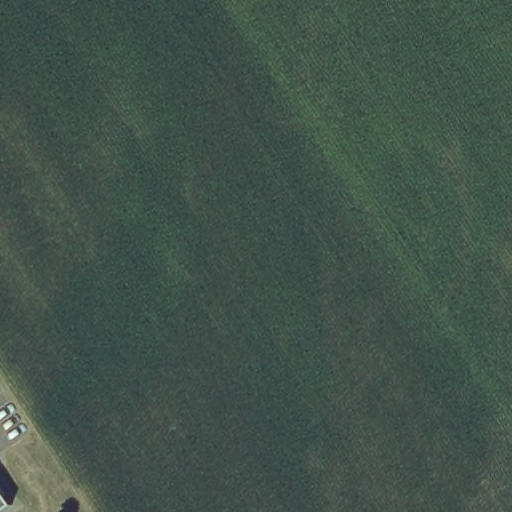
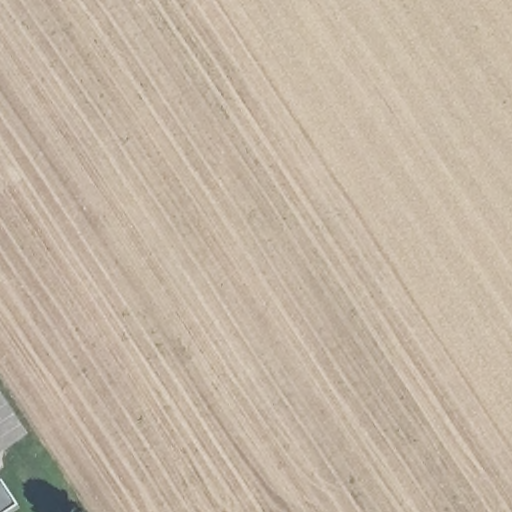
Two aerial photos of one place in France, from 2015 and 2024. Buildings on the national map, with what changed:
unchanged [(8,512),(0,512),(0,481),(16,506),(8,512)]

